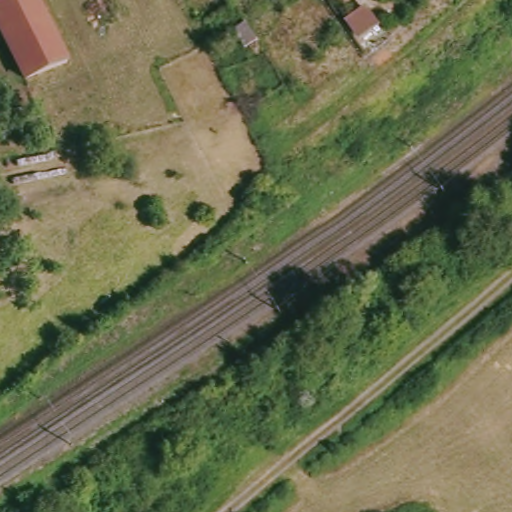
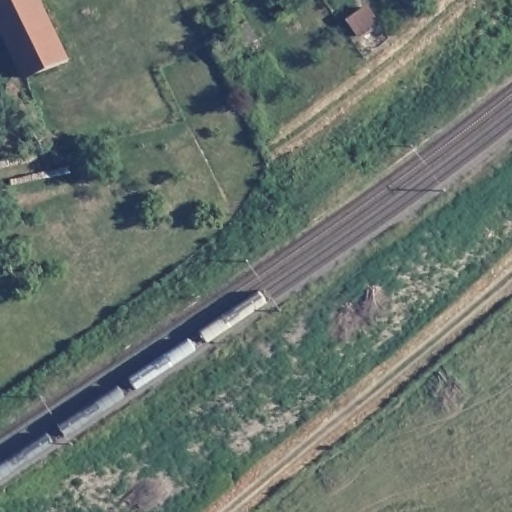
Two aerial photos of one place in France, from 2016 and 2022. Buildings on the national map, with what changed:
unchanged [(62,55),(14,74),(0,41),(0,0),(36,0),(62,55)]

